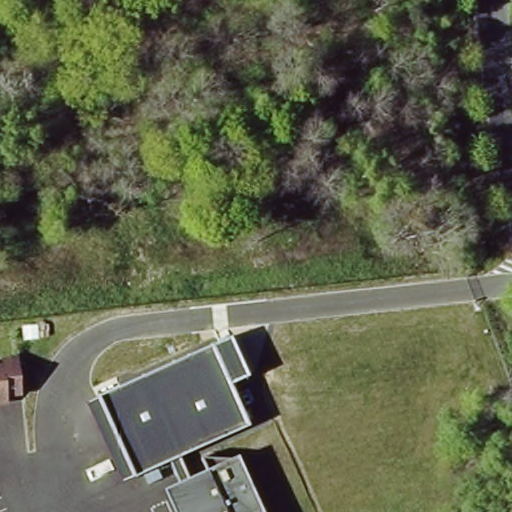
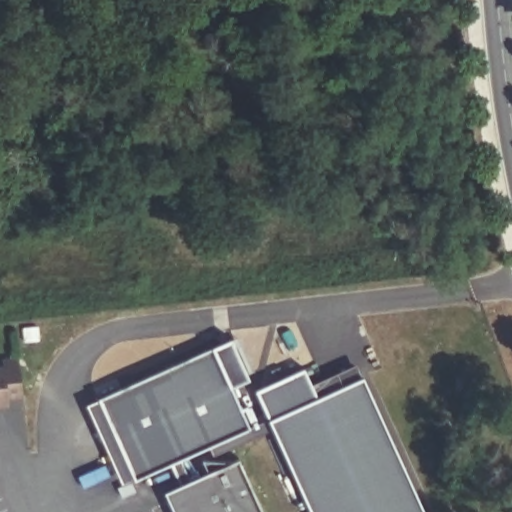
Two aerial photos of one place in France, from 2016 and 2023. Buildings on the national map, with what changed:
unchanged [(249,377),(230,384),(249,427),(123,483),(87,404),(231,338),(249,377)]
unchanged [(0,411),(0,369),(3,369),(2,362),(18,359),(19,367),(23,400),(8,402),(9,406),(9,409),(0,411)]
new [(162,489),(176,484),(167,463),(249,427),(268,418),(254,388),(304,366),(311,381),(356,362),(361,375),(363,374),(425,512),(310,512),(272,428),(211,457),(229,460),(236,457),(239,467),(259,512),(173,512),(162,489)]
demolished [(259,512),(187,512),(179,496),(208,483),(202,468),(232,469),(239,467),(259,512)]

